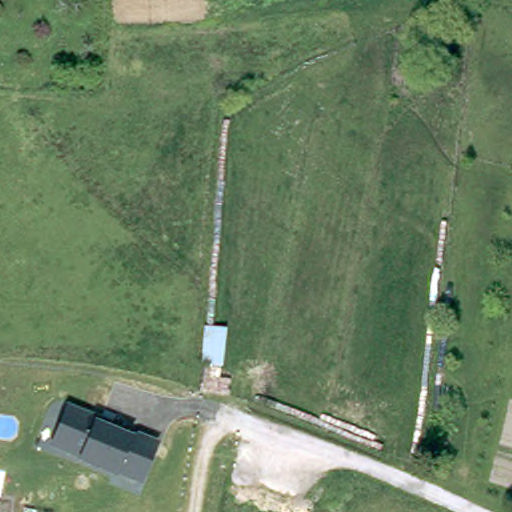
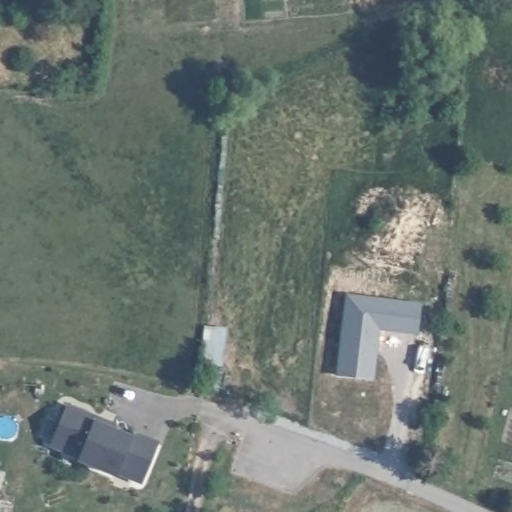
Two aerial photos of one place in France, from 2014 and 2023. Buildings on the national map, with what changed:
new [(422,302),(419,334),(380,330),(373,380),(335,376),(345,293),(422,302)]
unchanged [(225,332),(222,363),(205,362),(209,330),(225,332)]
unchanged [(97,415),(95,421),(132,434),(134,432),(158,441),(141,487),(47,450),(66,403),(97,415)]

